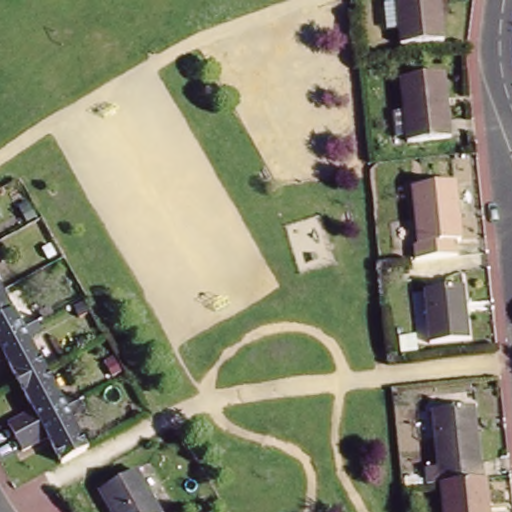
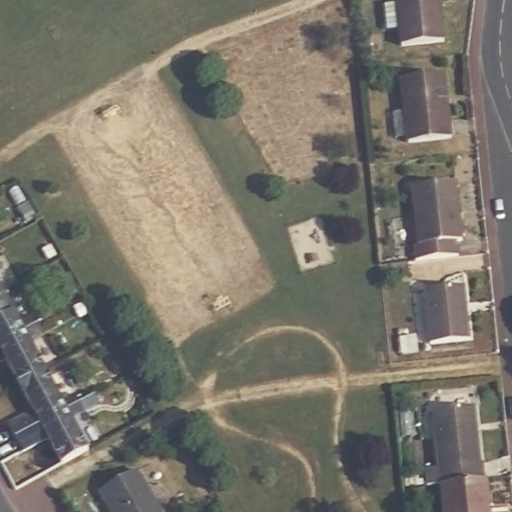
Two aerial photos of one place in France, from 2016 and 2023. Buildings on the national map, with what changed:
unchanged [(440,0),(445,42),(402,46),(400,30),(388,31),(385,6),(397,5),(396,0),(440,0)]
unchanged [(407,80),(450,75),(457,138),(413,143),(412,136),(401,138),(398,113),(410,111),(407,80)]
unchanged [(416,261),(415,245),(419,245),(413,187),(456,183),(462,240),(457,241),(459,256),(416,261)]
unchanged [(470,335),(431,339),(425,286),(464,282),(470,335)]
unchanged [(0,294),(0,286),(4,292),(0,294)]
unchanged [(20,323),(33,316),(37,325),(42,332),(29,339),(47,371),(20,386),(6,360),(0,363),(0,294),(4,292),(20,323)]
unchanged [(74,459),(63,465),(49,438),(24,451),(17,438),(10,425),(34,411),(20,386),(47,371),(64,403),(77,396),(80,403),(85,411),(72,418),(89,450),(74,459)]
unchanged [(427,485),(426,469),(439,467),(432,410),(475,406),(482,461),(483,461),(485,480),(442,484),(427,485)]
unchanged [(100,492),(137,470),(160,512),(111,512),(100,492)]
unchanged [(485,480),(487,479),(490,512),(445,512),(442,484),(485,480)]

